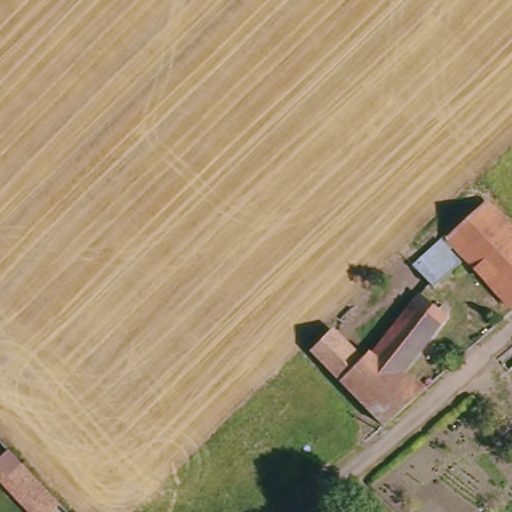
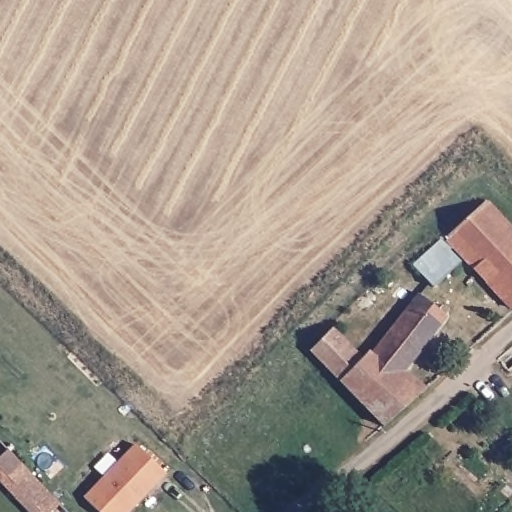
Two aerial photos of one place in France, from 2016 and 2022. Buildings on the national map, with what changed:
unchanged [(442,249),(453,261),(427,287),(407,265),(477,200),(512,238),(512,301),(505,308),(447,245),(442,249)]
unchanged [(355,360),(362,352),(367,355),(413,294),(441,315),(395,375),(418,392),(385,422),(305,358),(322,335),(355,360)]
new [(85,497),(135,445),(167,474),(131,512),(100,512),(85,497)]
unchanged [(0,487),(0,449),(52,501),(40,512),(25,512),(0,487)]

